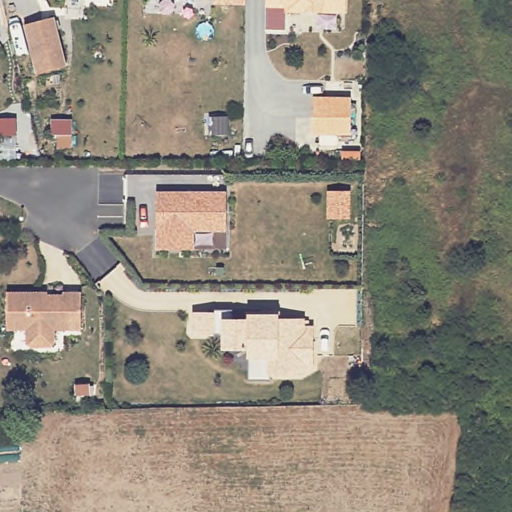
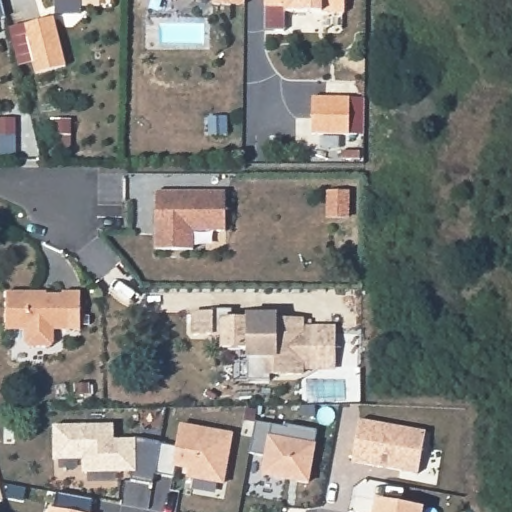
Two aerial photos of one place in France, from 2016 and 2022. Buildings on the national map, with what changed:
unchanged [(346,13),(286,12),(286,7),(266,7),(266,0),(346,0),(346,13)]
unchanged [(53,17),(65,65),(35,72),(24,24),(53,17)]
unchanged [(312,132),(313,96),(350,96),(349,133),(312,132)]
new [(15,135),(0,135),(0,120),(15,120),(15,135)]
unchanged [(155,192),(227,192),(227,232),(196,232),(196,250),(155,250),(155,192)]
unchanged [(81,332),(54,332),(55,345),(51,349),(30,349),(26,345),(26,332),(7,332),(7,288),(48,288),(48,291),(64,291),(64,288),(81,288),(81,332)]
unchanged [(249,379),(249,361),(249,347),(224,347),(224,333),(212,333),(195,333),(195,312),(213,312),(213,308),(233,308),(233,318),(249,318),(261,311),(278,311),(278,318),(303,317),(303,327),(313,327),(313,352),(313,367),(303,367),(303,372),(270,372),(270,379),(249,379)]
new [(359,420),(426,432),(419,473),(352,462),(359,420)]
new [(256,422),(286,427),(287,425),(318,431),(308,482),(263,474),(265,457),(250,454),(256,422)]
new [(113,425),(114,440),(134,440),(135,438),(161,443),(155,474),(153,485),(131,481),(131,471),(120,471),(120,472),(83,473),(83,460),(54,460),(54,427),(113,425)]
new [(174,477),(155,474),(161,443),(178,447),(182,426),(232,435),(223,483),(188,477),(175,475),(174,477)]
new [(54,509),(57,492),(94,498),(91,512),(50,512),(50,508),(54,509)]
new [(422,507),(421,512),(375,512),(378,498),(422,507)]

